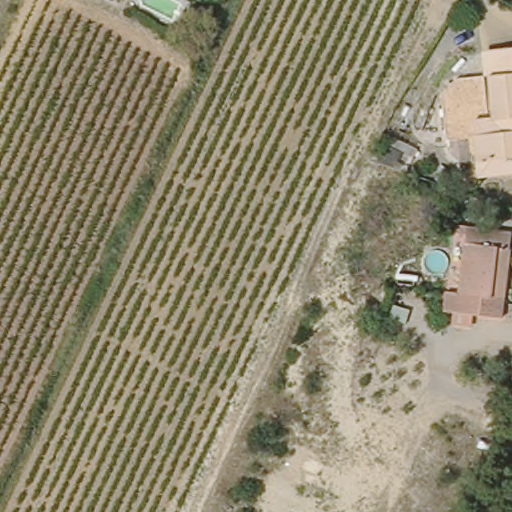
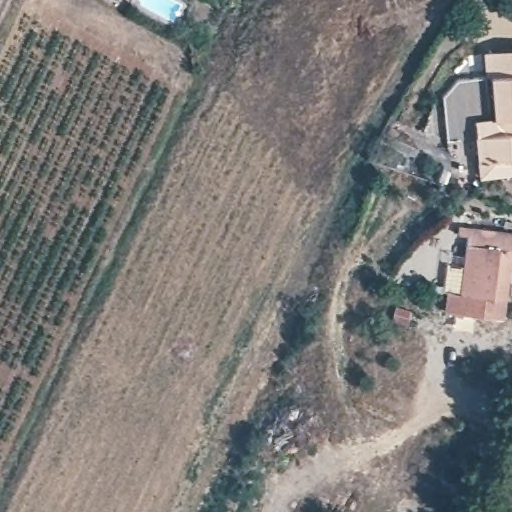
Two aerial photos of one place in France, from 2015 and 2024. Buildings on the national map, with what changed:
unchanged [(469,124),(489,122),(482,54),(512,51),(512,176),(474,180),(469,124)]
unchanged [(489,122),(469,124),(470,135),(448,139),(443,94),(460,79),(484,74),(489,122)]
unchanged [(418,149),(411,175),(367,160),(382,131),(418,149)]
unchanged [(444,316),(446,295),(460,297),(467,239),(455,237),(457,230),(512,236),(502,323),(444,316)]

